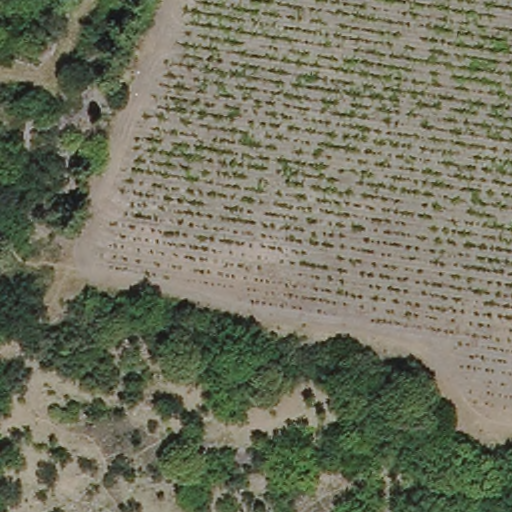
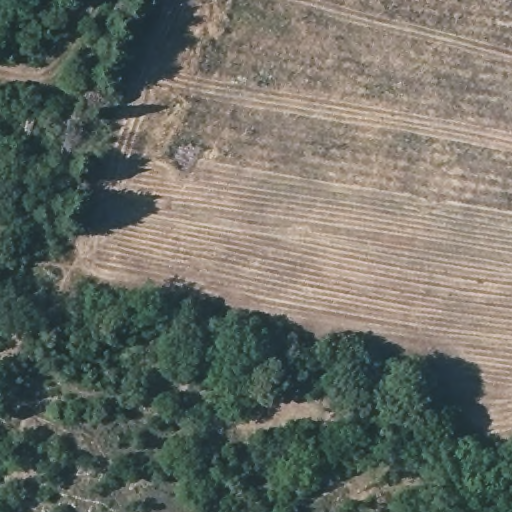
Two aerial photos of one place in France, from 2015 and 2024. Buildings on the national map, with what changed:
[]

